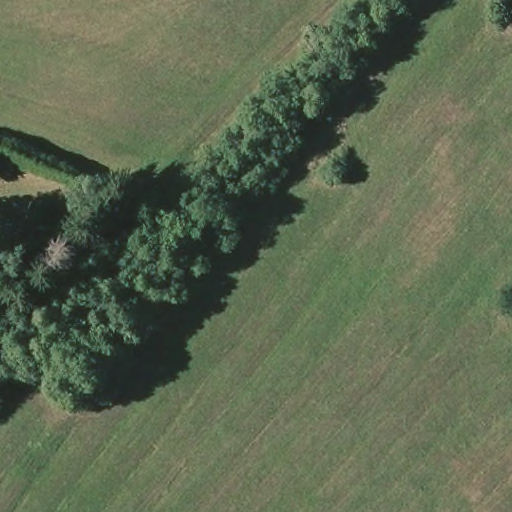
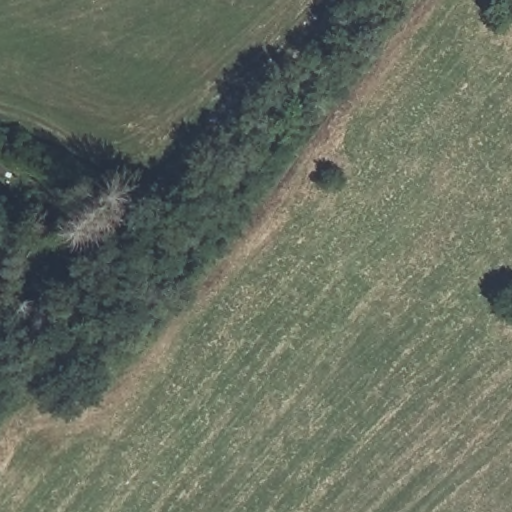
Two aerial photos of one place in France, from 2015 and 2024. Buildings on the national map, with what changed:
unchanged [(0,172),(0,154),(19,163),(13,178),(0,172)]

